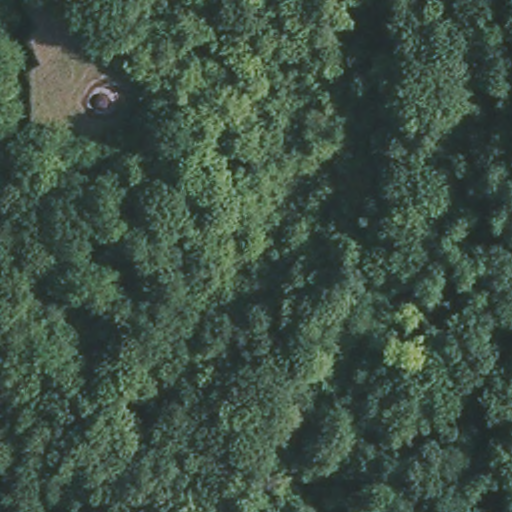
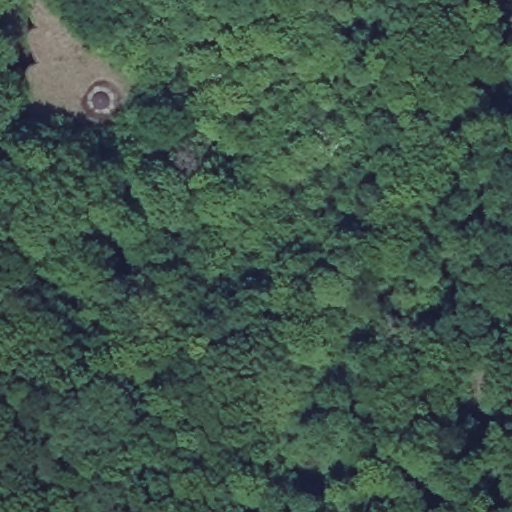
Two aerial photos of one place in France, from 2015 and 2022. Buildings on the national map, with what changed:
unchanged [(183,64),(186,91),(181,121),(156,146),(95,159),(33,151),(29,100),(29,74),(39,65),(33,49),(28,34),(36,27),(28,1),(28,0),(122,0),(153,26),(183,64)]

